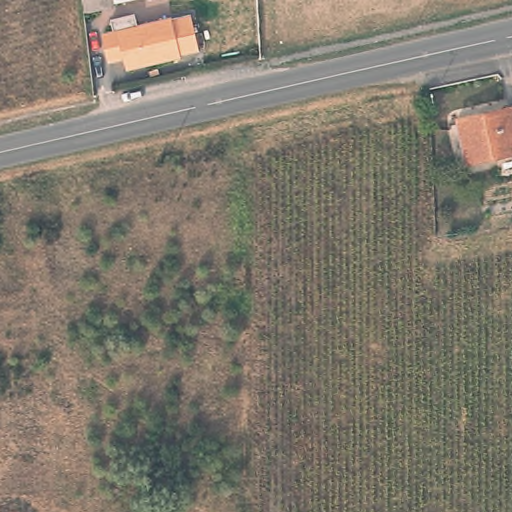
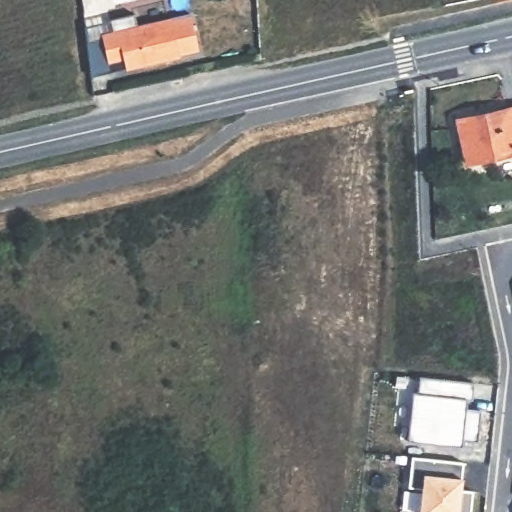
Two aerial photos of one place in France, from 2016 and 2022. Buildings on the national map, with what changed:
unchanged [(116,0),(114,0),(114,4),(84,10),(82,0),(116,0)]
unchanged [(164,21),(184,17),(192,55),(172,60),(121,71),(118,61),(105,65),(97,36),(164,21)]
unchanged [(512,154),(467,165),(456,122),(512,108),(512,154)]
new [(412,391),(419,392),(420,376),(473,383),(472,400),(467,399),(466,408),(480,411),(476,441),(462,440),(462,445),(407,440),(412,391)]
new [(411,454),(462,460),(460,477),(458,488),(471,490),(469,512),(418,512),(420,489),(407,487),(411,454)]

